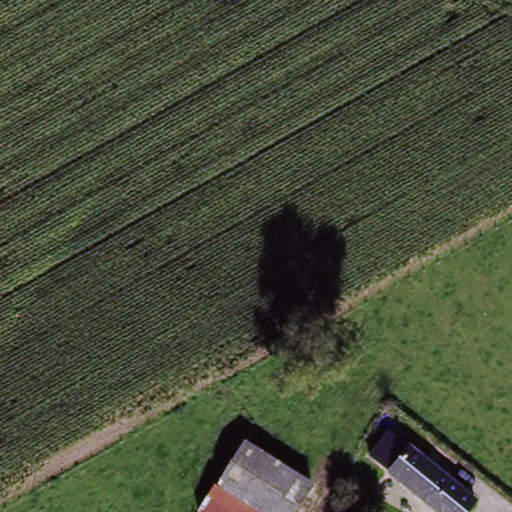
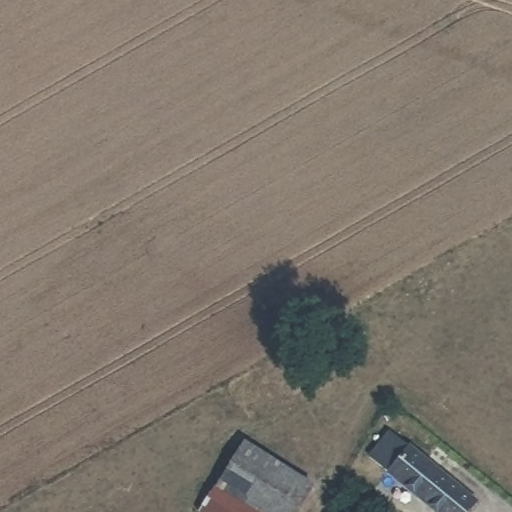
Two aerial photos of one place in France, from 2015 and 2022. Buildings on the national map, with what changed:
unchanged [(248,436),(308,479),(286,512),(258,512),(216,482),(248,436)]
unchanged [(480,508),(477,512),(441,512),(385,468),(402,446),(480,508)]
unchanged [(308,479),(319,487),(303,512),(286,512),(308,479)]
unchanged [(216,482),(258,512),(195,512),(216,482)]

